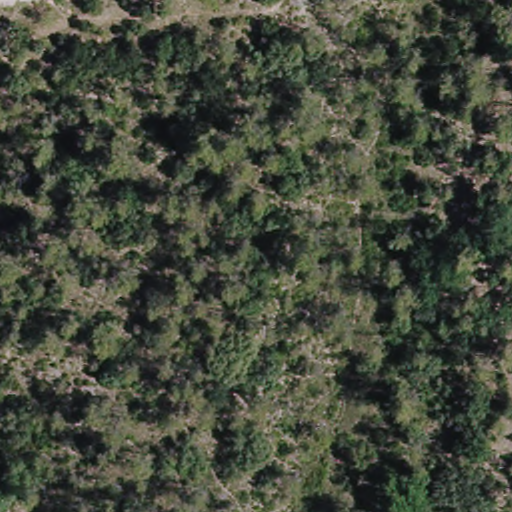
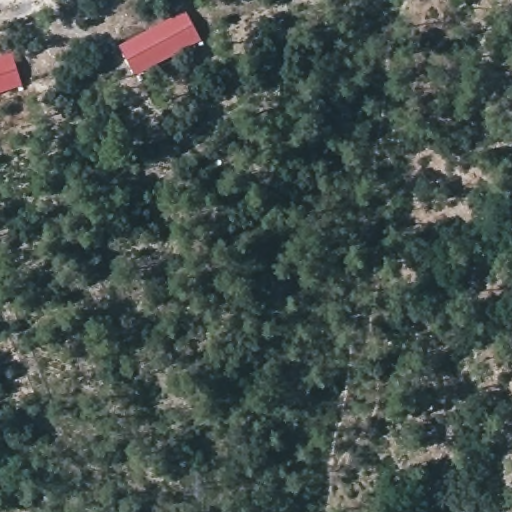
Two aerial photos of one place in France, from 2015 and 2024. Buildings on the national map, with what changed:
new [(136,76),(119,45),(186,10),(202,41),(136,76)]
new [(23,86),(0,93),(0,57),(11,53),(23,86)]

